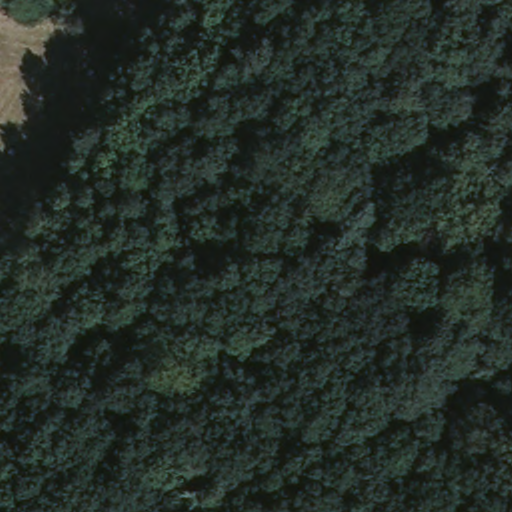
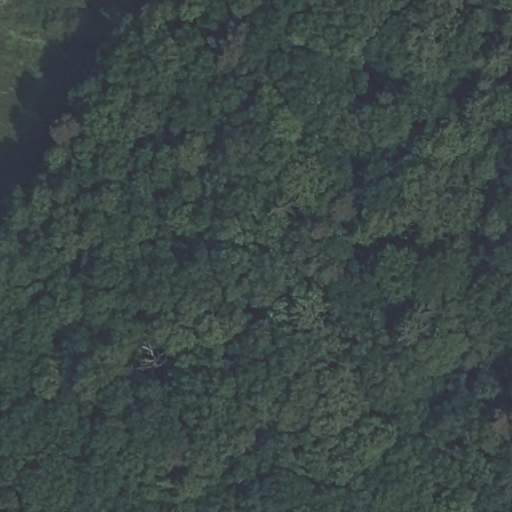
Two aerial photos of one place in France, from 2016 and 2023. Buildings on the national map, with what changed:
[]

